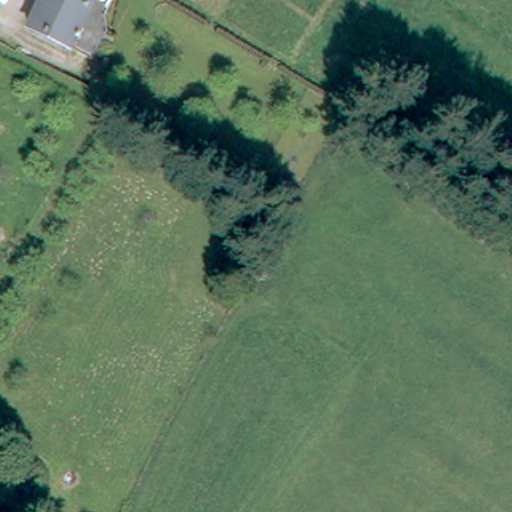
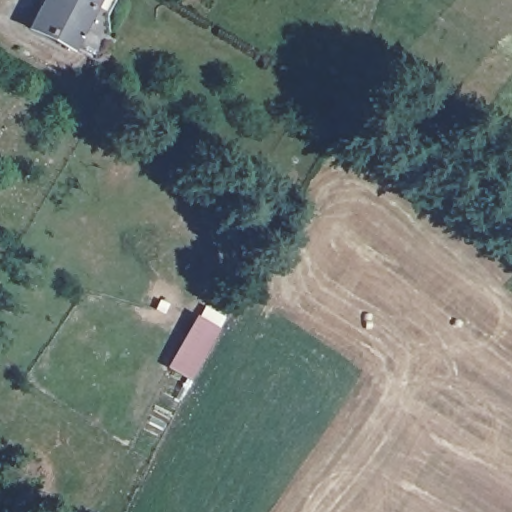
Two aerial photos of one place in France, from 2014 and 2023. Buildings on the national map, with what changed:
unchanged [(42,7),(46,0),(117,0),(108,14),(95,6),(72,44),(33,23),(42,7)]
new [(219,327),(190,380),(167,367),(195,315),(219,327)]

